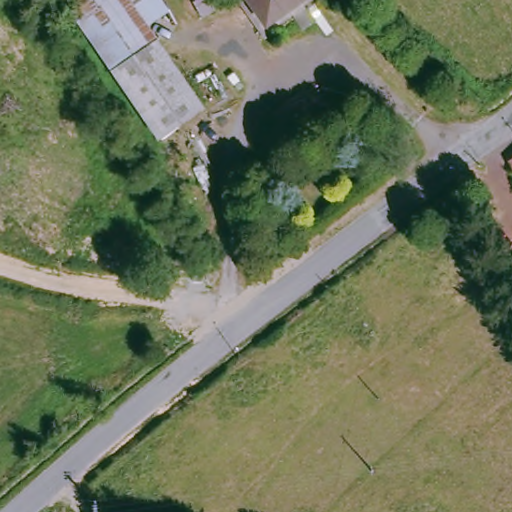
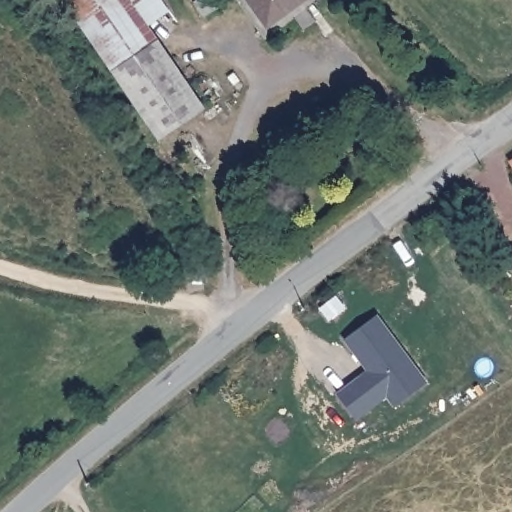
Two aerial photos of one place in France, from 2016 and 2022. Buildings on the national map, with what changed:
unchanged [(166,15),(146,27),(206,114),(157,146),(60,7),(72,0),(156,0),(166,15)]
unchanged [(195,0),(221,0),(223,2),(201,16),(193,1),(195,0)]
unchanged [(265,33),(241,0),(313,0),(265,33)]
unchanged [(512,160),(512,167),(509,161),(512,160)]
new [(339,290),(347,302),(331,312),(323,301),(339,290)]
new [(371,363),(363,351),(360,354),(345,332),(378,310),(426,380),(393,402),(386,391),(354,413),(336,387),(371,363)]

